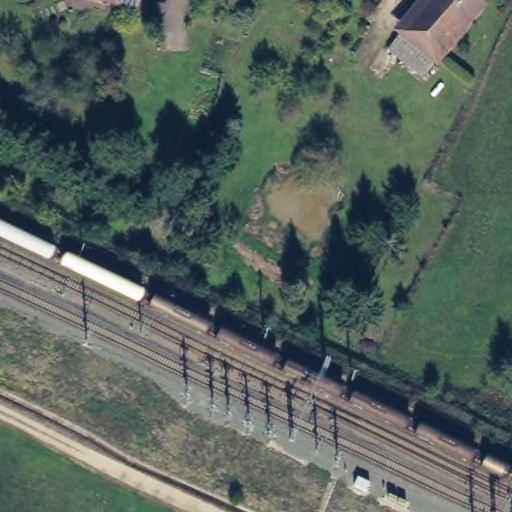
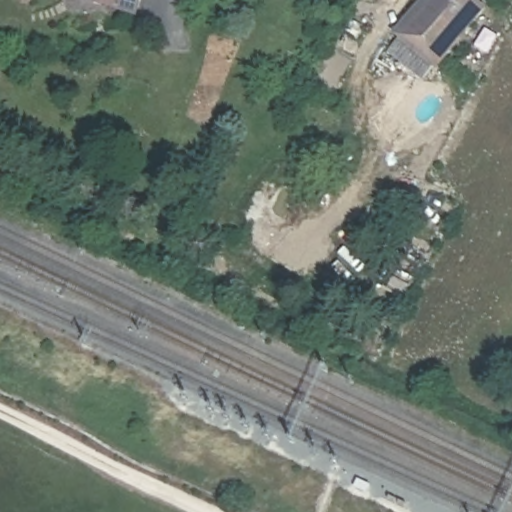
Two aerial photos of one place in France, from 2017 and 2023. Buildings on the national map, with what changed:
unchanged [(138,18),(98,6),(79,0),(143,0),(138,18)]
unchanged [(426,9),(419,3),(422,0),(430,0),(432,1),(432,0),(465,0),(478,11),(422,82),(388,53),(426,9)]

